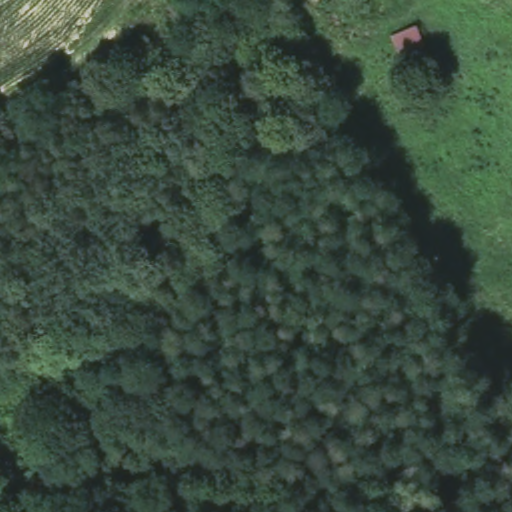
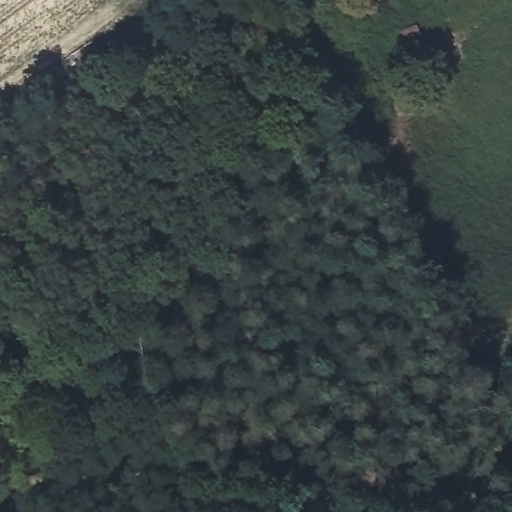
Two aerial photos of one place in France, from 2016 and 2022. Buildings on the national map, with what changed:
unchanged [(423,29),(434,56),(407,64),(396,35),(423,29)]

